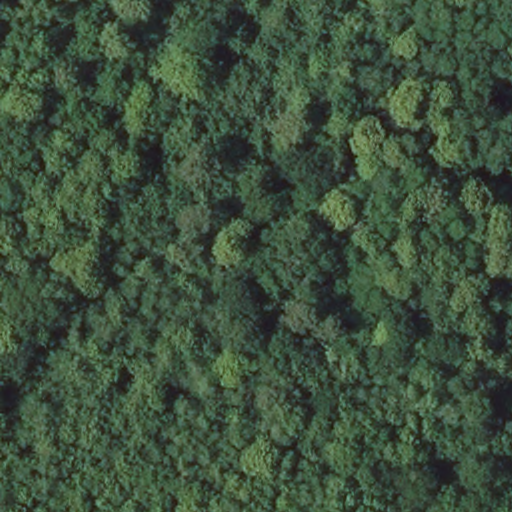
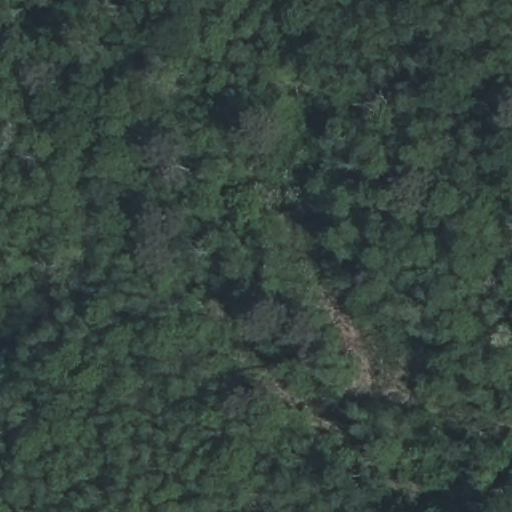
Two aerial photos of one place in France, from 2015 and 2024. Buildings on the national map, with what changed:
[]

